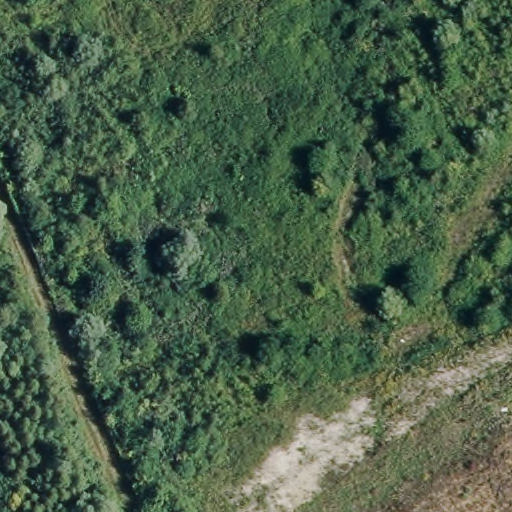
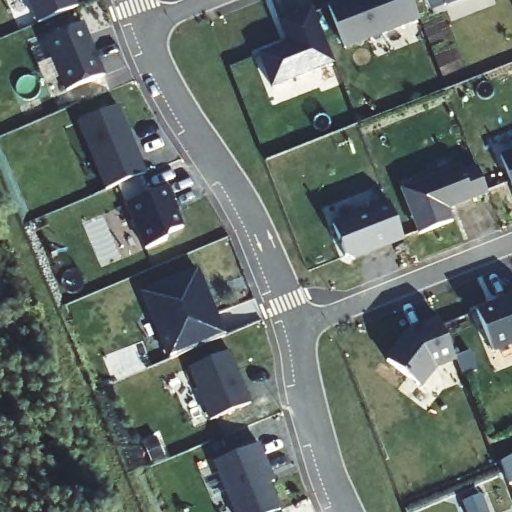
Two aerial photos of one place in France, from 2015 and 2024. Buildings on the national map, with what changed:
new [(28,0),(77,0),(78,3),(37,21),(28,0)]
new [(412,0),(420,19),(345,48),(329,4),(340,0),(412,0)]
new [(444,0),(457,0),(445,5),(444,0)]
new [(312,7),(334,61),(272,87),(257,54),(286,43),(278,21),(312,7)]
new [(65,90),(45,39),(85,22),(105,73),(65,90)]
new [(105,189),(77,123),(118,105),(147,170),(105,189)]
new [(512,149),(512,182),(501,153),(512,149)]
new [(487,193),(450,209),(453,219),(418,232),(401,187),(460,163),(465,171),(477,165),(487,193)]
new [(126,204),(168,186),(185,225),(145,249),(126,204)]
new [(403,239),(355,258),(346,254),(333,221),(390,200),(403,239)]
new [(170,356),(141,291),(198,266),(226,333),(170,356)]
new [(510,295),(508,293),(512,291),(512,343),(495,350),(476,308),(510,295)]
new [(408,328),(438,316),(455,359),(436,366),(421,385),(385,358),(408,328)]
new [(210,418),(189,368),(231,351),(252,400),(210,418)]
new [(277,477),(272,480),(281,504),(266,512),(235,512),(215,459),(261,440),(277,477)]
unchanged [(512,452),(512,481),(508,483),(499,460),(512,452)]

